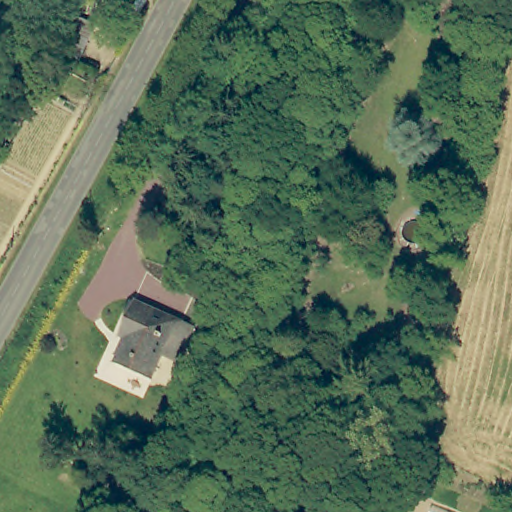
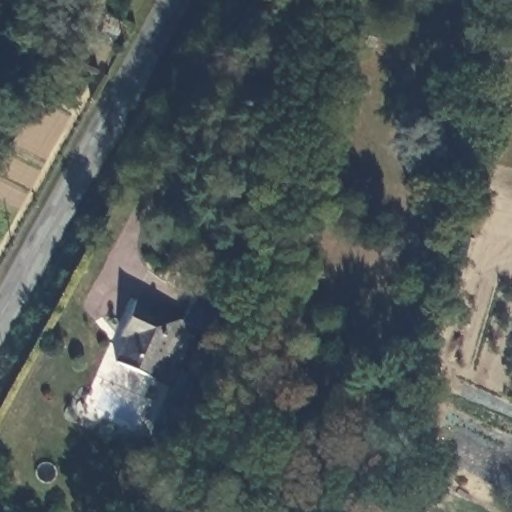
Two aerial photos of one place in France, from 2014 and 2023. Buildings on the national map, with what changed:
unchanged [(197,332),(181,365),(164,355),(150,381),(114,363),(125,340),(118,336),(135,301),(197,332)]

